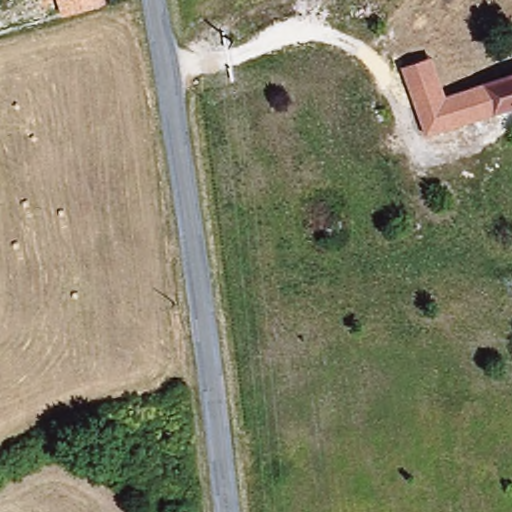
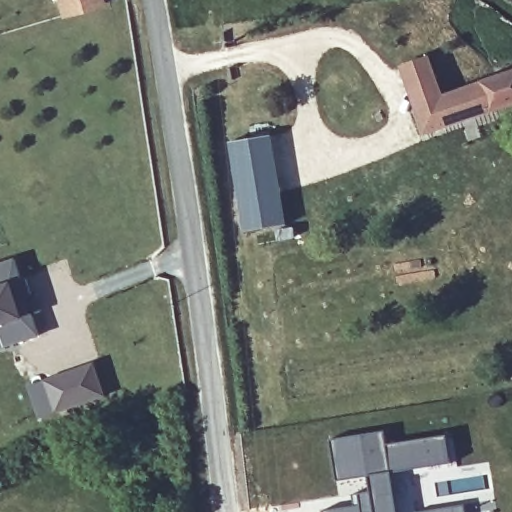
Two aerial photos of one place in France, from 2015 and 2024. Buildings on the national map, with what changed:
unchanged [(106,5),(62,18),(57,0),(105,0),(106,5)]
unchanged [(421,99),(416,101),(403,65),(435,54),(445,91),(421,99)]
unchanged [(512,113),(485,119),(475,81),(512,69),(512,113)]
unchanged [(432,131),(421,99),(475,81),(485,119),(432,131)]
new [(285,223),(245,229),(231,140),(272,134),(285,223)]
new [(17,257),(42,337),(0,351),(0,263),(17,257)]
new [(97,362),(109,397),(39,422),(27,386),(97,362)]
new [(393,472),(399,512),(325,512),(325,508),(362,502),(361,492),(373,490),(371,475),(339,478),(333,437),(388,430),(390,443),(451,435),(455,462),(393,472)]
new [(440,508),(466,505),(467,512),(417,512),(440,508)]

